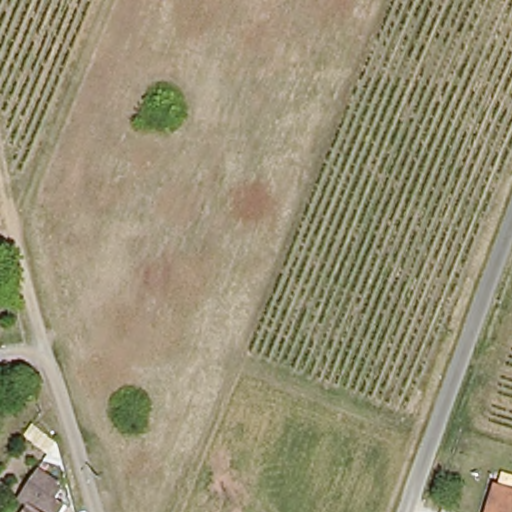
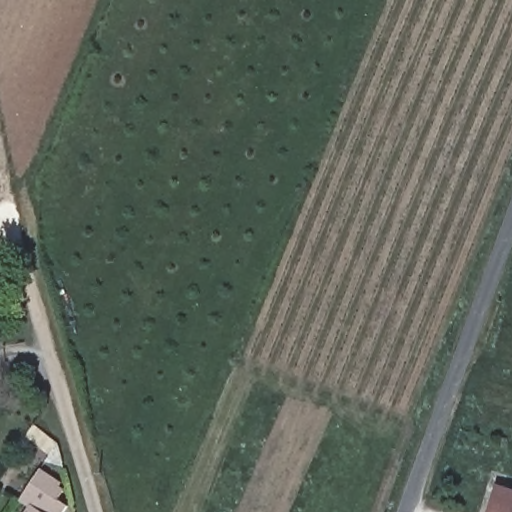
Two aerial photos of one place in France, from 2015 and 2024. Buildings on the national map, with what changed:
unchanged [(17,496),(37,467),(62,486),(55,497),(65,505),(60,512),(22,512),(26,505),(17,496)]
unchanged [(512,489),(512,512),(491,512),(500,484),(512,489)]

